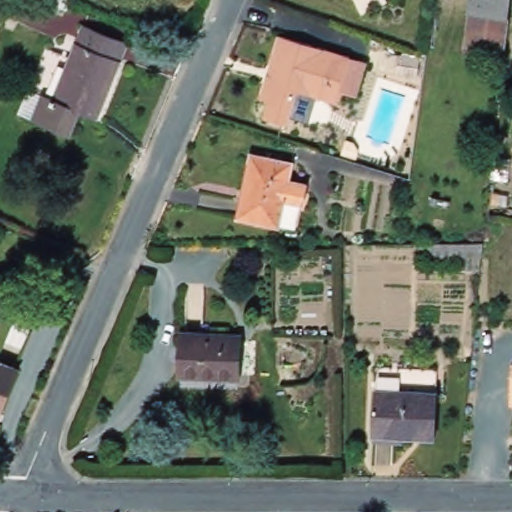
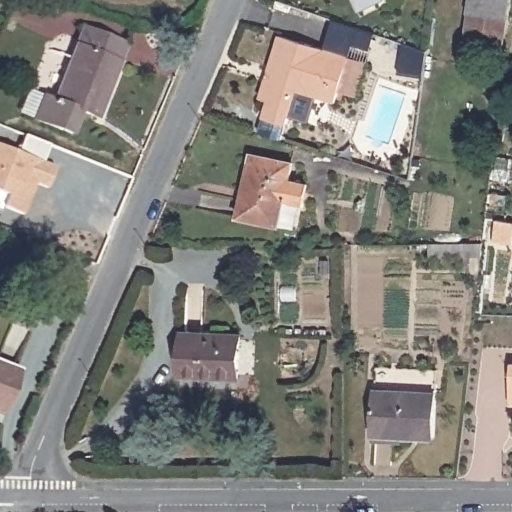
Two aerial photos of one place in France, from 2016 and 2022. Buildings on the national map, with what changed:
unchanged [(383,5),(362,18),(351,0),(381,0),(383,5)]
unchanged [(508,17),(469,13),(470,0),(509,0),(508,17)]
unchanged [(469,13),(508,17),(507,48),(506,53),(466,49),(466,43),(469,13)]
unchanged [(39,98),(50,102),(79,28),(122,45),(104,94),(99,92),(89,118),(77,113),(69,133),(67,137),(28,123),(30,118),(39,98)]
unchanged [(347,57),(332,101),(295,89),(283,124),(260,116),(265,100),(258,97),(265,78),(267,71),(278,36),(347,57)]
new [(55,165),(47,188),(36,183),(22,213),(2,206),(6,194),(0,192),(0,143),(18,151),(25,135),(50,145),(42,162),(55,165)]
unchanged [(250,153),(289,162),(285,181),(302,185),(291,231),(234,216),(250,153)]
new [(430,256),(431,244),(481,244),(481,257),(430,256)]
unchanged [(238,339),(236,384),(178,382),(180,337),(238,339)]
unchanged [(509,406),(510,364),(512,364),(512,406),(509,406)]
unchanged [(0,412),(0,366),(17,372),(0,412)]
unchanged [(434,397),(432,442),(373,440),(375,395),(434,397)]

